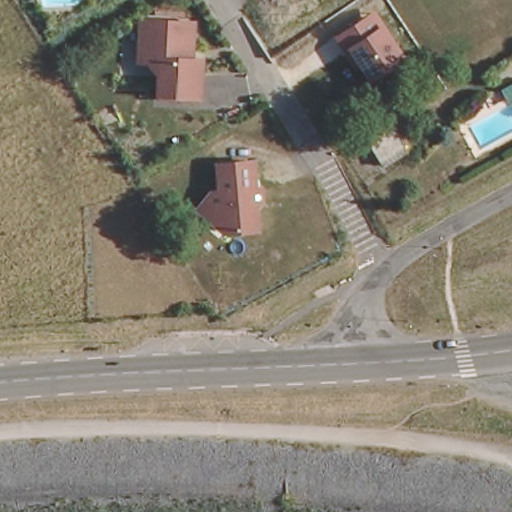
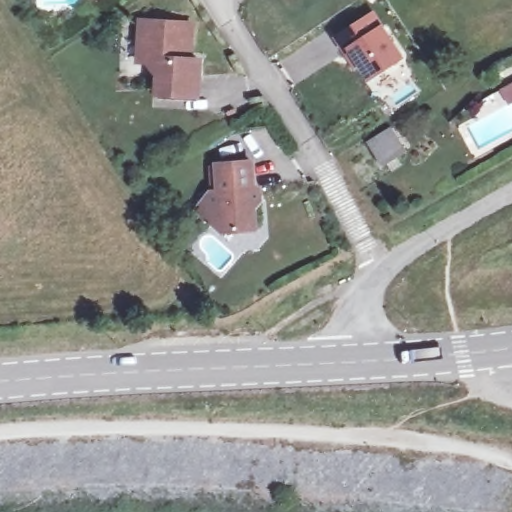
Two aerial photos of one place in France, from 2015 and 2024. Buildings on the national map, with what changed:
unchanged [(383,25),(405,60),(367,83),(345,51),(336,39),(373,12),(383,25)]
unchanged [(136,22),(185,25),(186,25),(184,60),(193,60),(191,97),(152,95),(154,63),(132,62),(134,24),(136,22)]
unchanged [(405,156),(381,170),(367,146),(391,132),(405,156)]
unchanged [(210,192),(217,192),(215,165),(251,163),(253,190),(258,189),(259,202),(253,209),(254,230),(221,232),(213,225),(195,210),(203,200),(210,192)]

